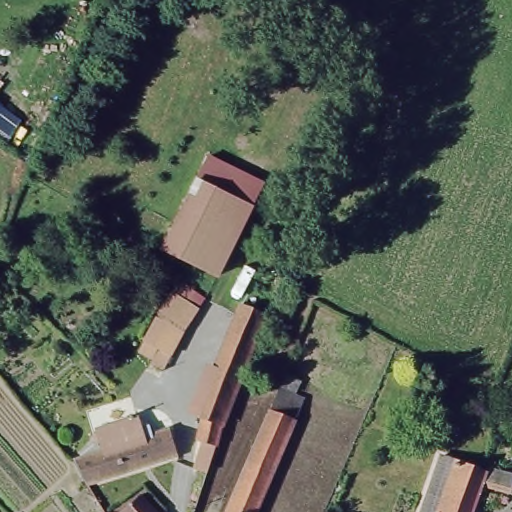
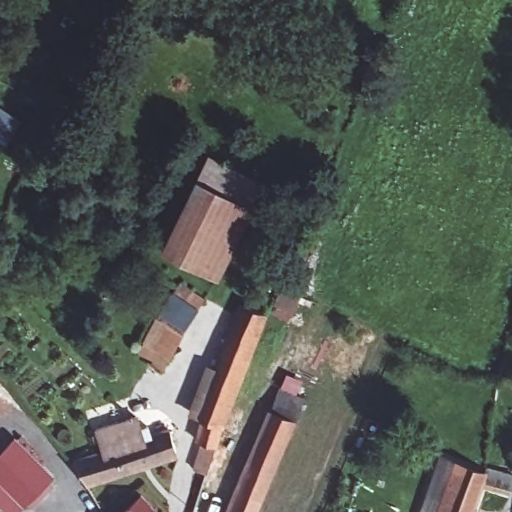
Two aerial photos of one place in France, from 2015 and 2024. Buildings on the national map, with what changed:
unchanged [(207,151),(266,180),(223,279),(157,250),(207,151)]
unchanged [(176,281),(202,295),(164,367),(132,355),(176,281)]
unchanged [(280,282),(301,291),(290,319),(268,310),(270,303),(280,282)]
unchanged [(195,440),(202,421),(191,417),(211,366),(236,303),(240,305),(245,293),(270,303),(260,331),(243,375),(226,418),(205,475),(190,469),(201,442),(195,440)]
unchanged [(273,391),(298,402),(292,417),(253,512),(223,512),(267,406),(273,391)]
unchanged [(95,440),(90,442),(87,434),(92,432),(90,427),(130,413),(135,423),(137,426),(144,423),(147,432),(151,431),(167,426),(177,454),(96,486),(85,491),(83,492),(80,486),(81,484),(82,484),(79,478),(70,462),(99,450),(95,440)]
new [(0,453),(16,436),(55,475),(25,506),(18,512),(5,512),(0,507),(0,453)]
unchanged [(478,468),(480,463),(485,465),(510,472),(511,472),(507,492),(481,485),(473,512),(414,512),(432,455),(445,459),(458,463),(478,468)]
unchanged [(133,500),(137,497),(153,512),(119,512),(133,500)]

